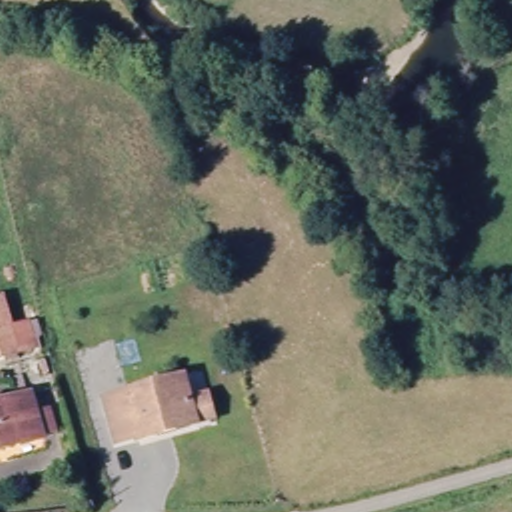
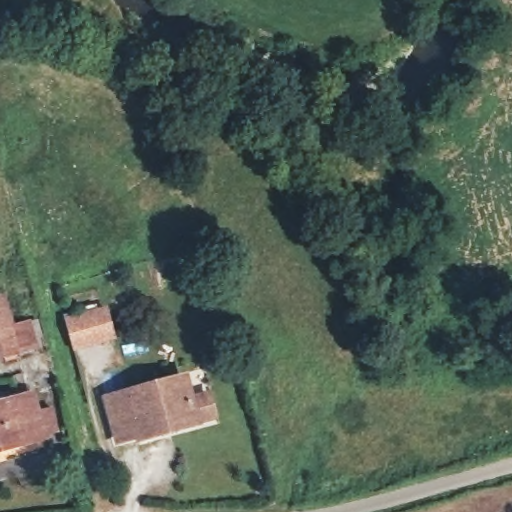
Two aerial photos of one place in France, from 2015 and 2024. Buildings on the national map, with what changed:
unchanged [(4,298),(15,327),(32,322),(41,346),(0,361),(0,300),(4,298)]
new [(107,307),(116,341),(74,353),(64,318),(107,307)]
unchanged [(143,432),(122,437),(112,396),(190,376),(196,397),(214,392),(220,414),(201,419),(143,433),(143,432)]
unchanged [(32,396),(35,410),(51,407),(54,427),(0,437),(0,402),(32,396)]

